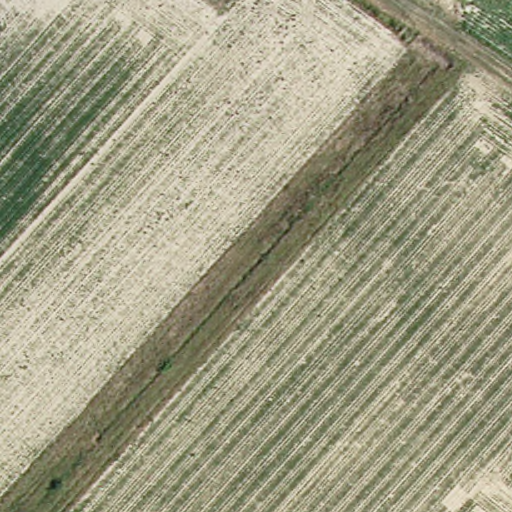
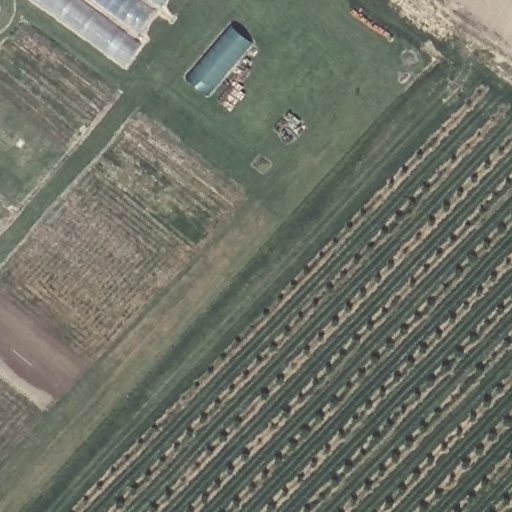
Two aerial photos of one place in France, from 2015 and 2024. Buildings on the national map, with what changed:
new [(134,42),(140,46),(128,63),(41,0),(162,0),(134,42)]

